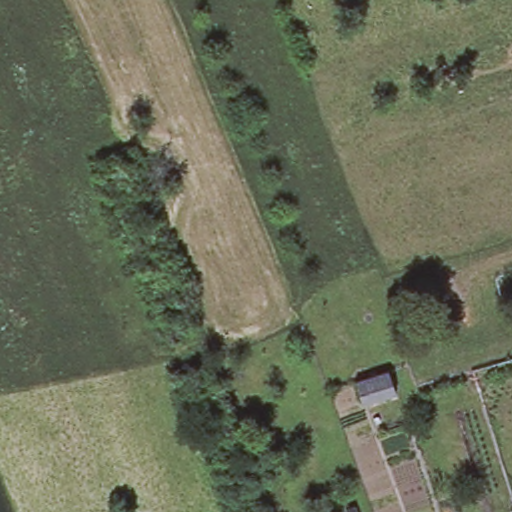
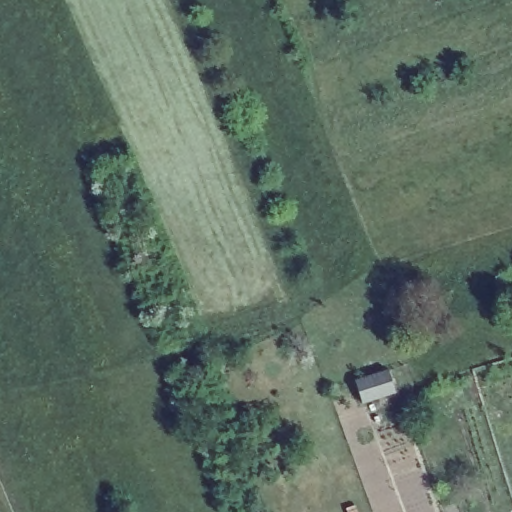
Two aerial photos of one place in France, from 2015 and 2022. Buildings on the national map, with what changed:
unchanged [(362,381),(375,376),(395,370),(402,392),(383,398),(370,402),(362,381)]

